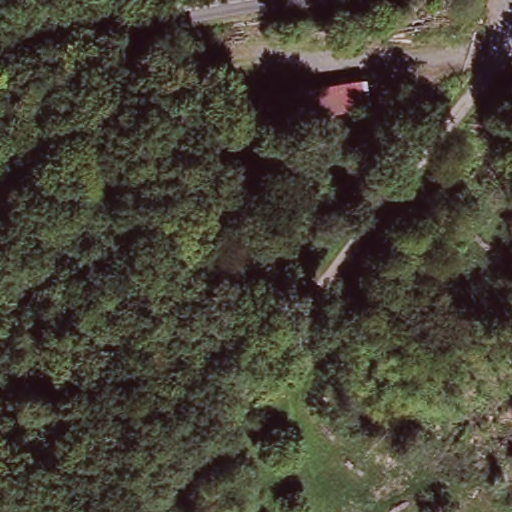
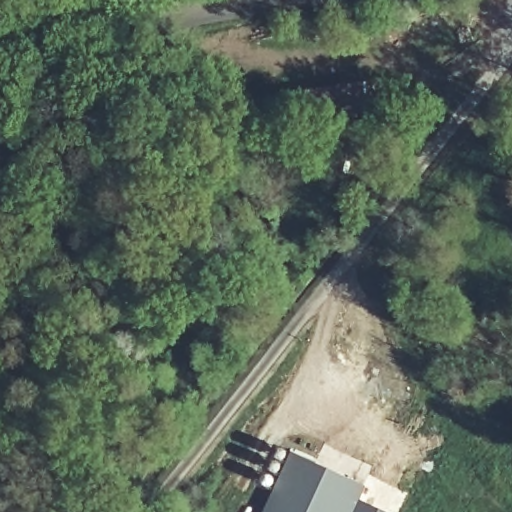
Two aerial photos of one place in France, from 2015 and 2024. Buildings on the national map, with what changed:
unchanged [(264,126),(259,99),(365,81),(370,113),(264,126)]
new [(366,485),(354,512),(263,512),(291,453),(366,485)]

